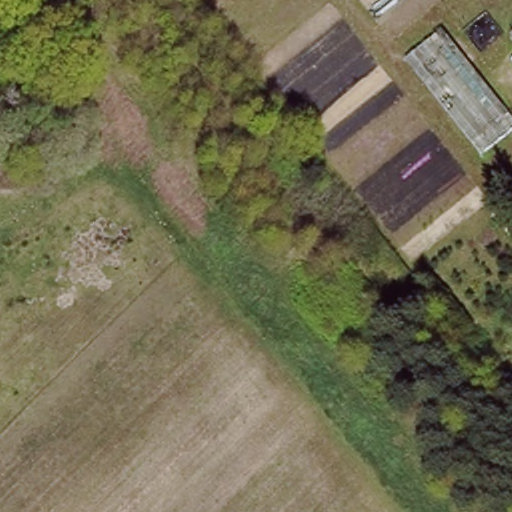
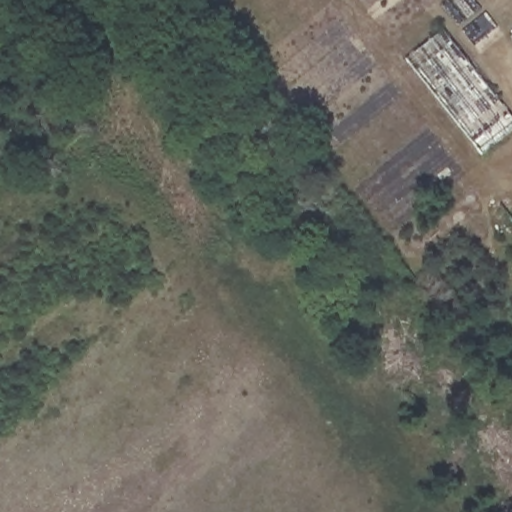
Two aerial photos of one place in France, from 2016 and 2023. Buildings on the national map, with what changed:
unchanged [(512,27),(512,41),(505,33),(512,27)]
unchanged [(512,118),(512,134),(484,157),(407,61),(443,32),(512,118)]

